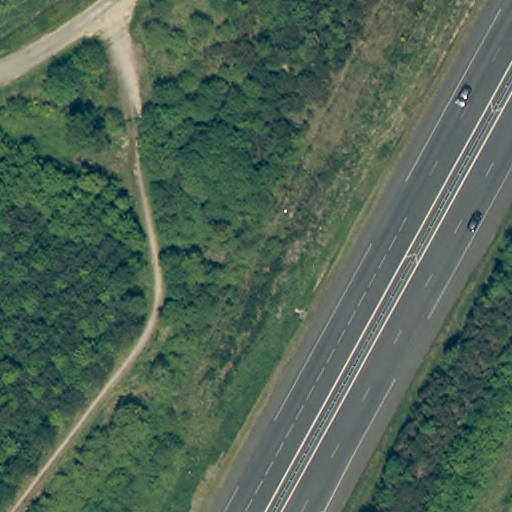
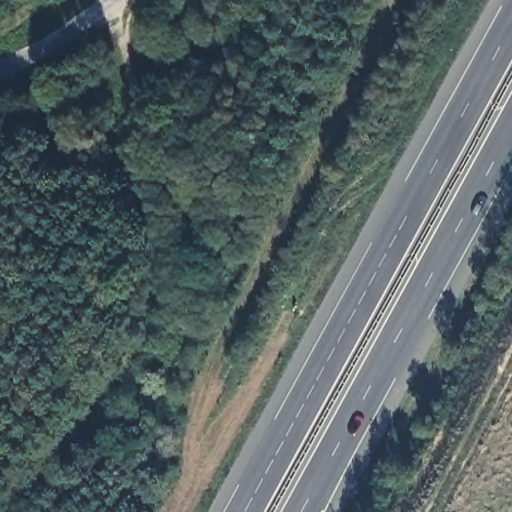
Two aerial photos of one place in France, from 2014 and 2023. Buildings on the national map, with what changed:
[]

